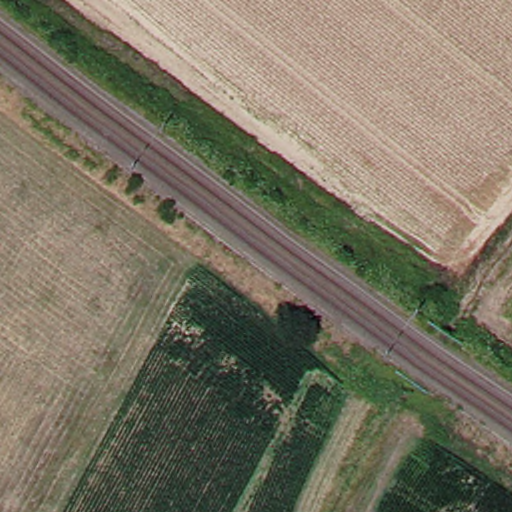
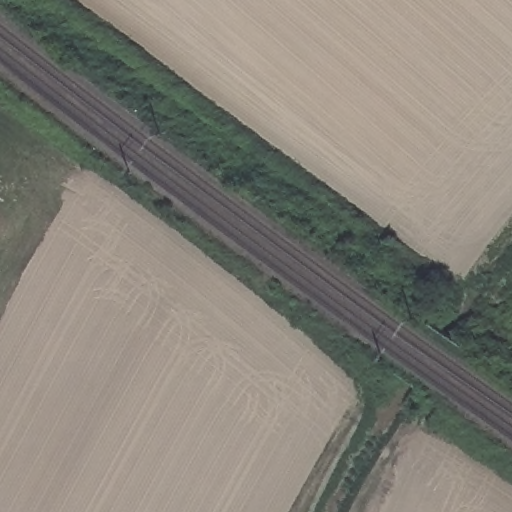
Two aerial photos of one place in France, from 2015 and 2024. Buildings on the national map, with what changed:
[]

